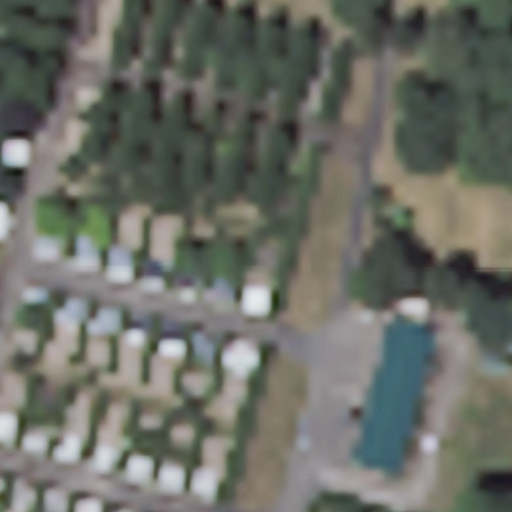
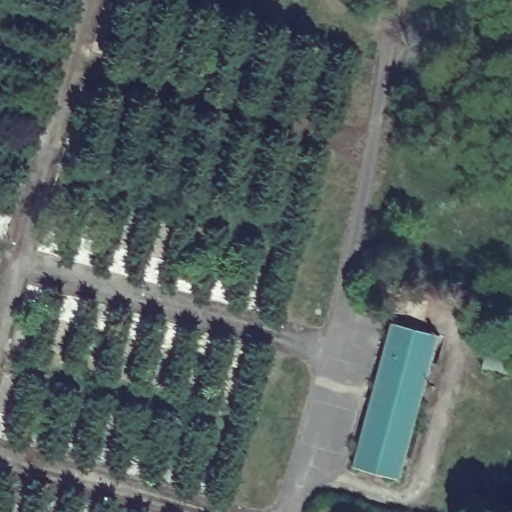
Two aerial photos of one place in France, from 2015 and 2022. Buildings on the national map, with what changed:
unchanged [(354,465),(394,320),(441,335),(400,480),(354,465)]

